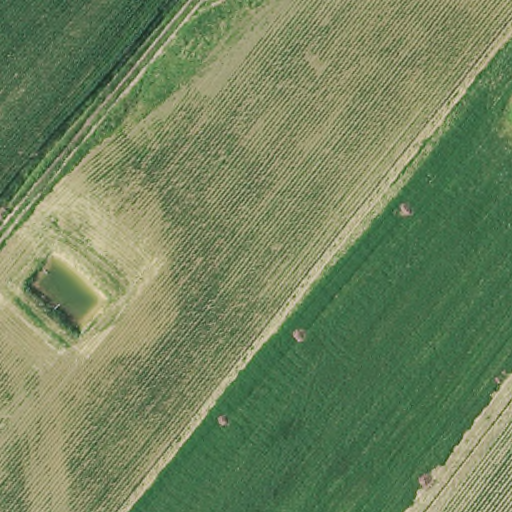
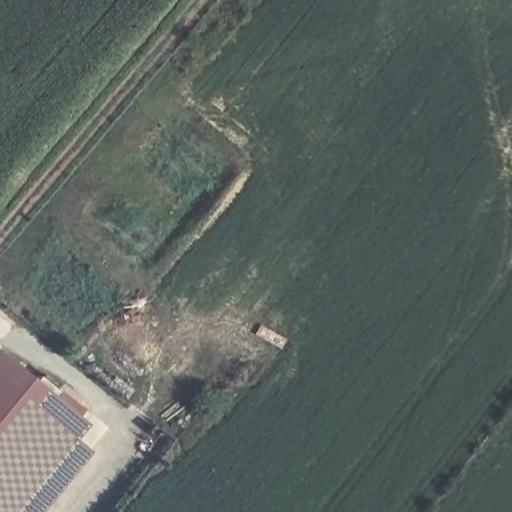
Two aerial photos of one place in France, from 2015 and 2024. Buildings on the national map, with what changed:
new [(0,353),(86,425),(75,440),(89,451),(42,512),(0,512),(0,353)]

